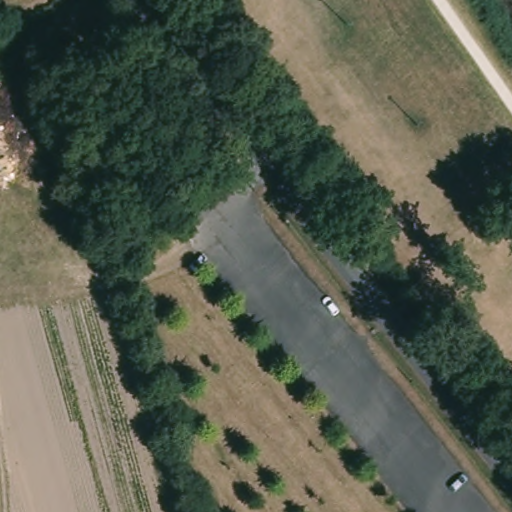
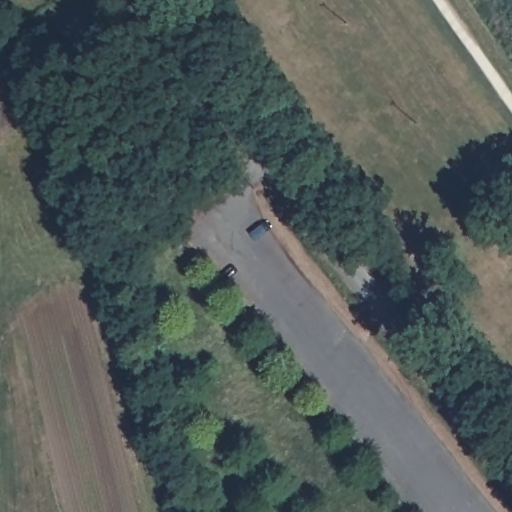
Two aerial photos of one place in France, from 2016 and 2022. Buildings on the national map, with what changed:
[]

